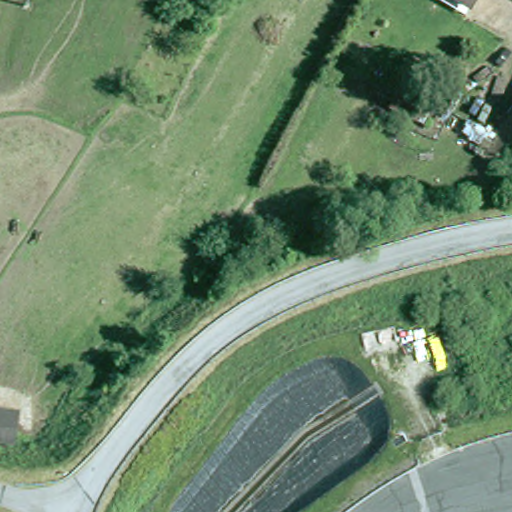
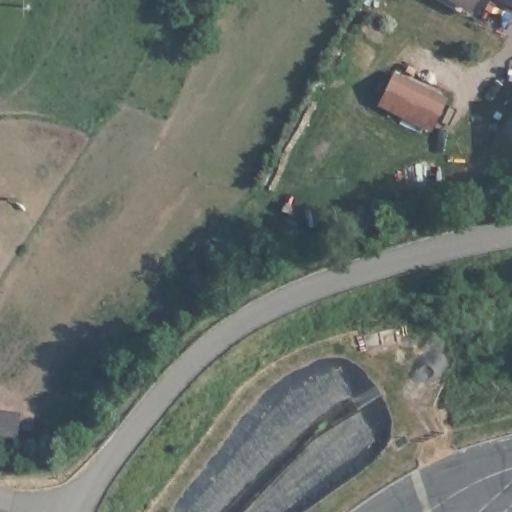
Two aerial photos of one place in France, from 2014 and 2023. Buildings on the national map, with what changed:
unchanged [(453,2),(449,0),(474,0),(469,10),(453,2)]
new [(447,96),(432,131),(379,105),(394,70),(447,96)]
unchanged [(0,445),(0,414),(12,415),(8,445),(0,445)]

